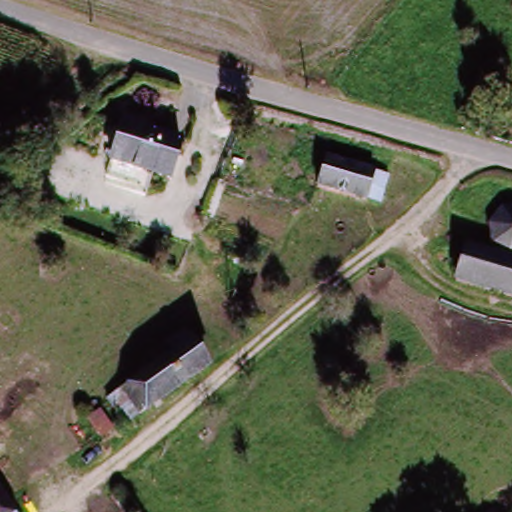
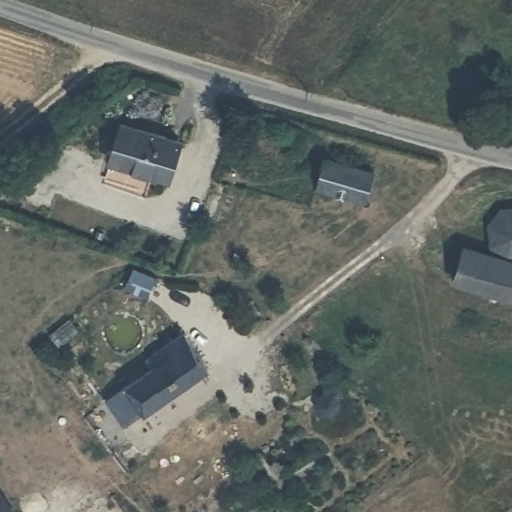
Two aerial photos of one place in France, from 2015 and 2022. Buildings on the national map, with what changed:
unchanged [(179,141),(170,174),(114,160),(123,126),(179,141)]
unchanged [(388,182),(380,205),(319,186),(328,161),(388,182)]
unchanged [(486,228),(504,210),(512,210),(512,267),(506,267),(487,251),(486,228)]
unchanged [(512,303),(453,280),(463,254),(512,272),(512,303)]
unchanged [(113,403),(158,370),(154,358),(185,336),(210,368),(130,426),(113,403)]
unchanged [(16,512),(0,512),(0,492),(16,512)]

